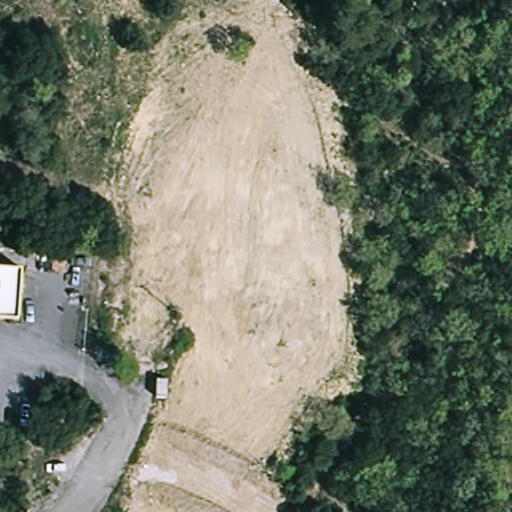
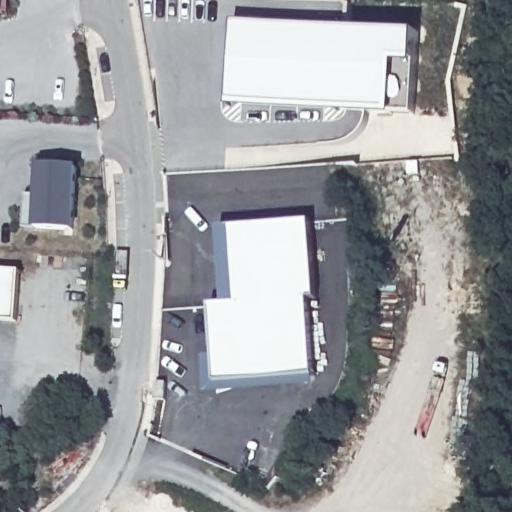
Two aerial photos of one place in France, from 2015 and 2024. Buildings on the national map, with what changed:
new [(0,0),(5,0),(4,12),(0,12),(0,0)]
new [(419,35),(414,114),(231,102),(236,23),(419,35)]
new [(38,164),(80,166),(75,230),(35,227),(38,164)]
new [(314,222),(320,298),(311,299),(317,375),(318,386),(207,395),(205,357),(215,356),(211,306),(225,306),(220,229),(314,222)]
unchanged [(17,328),(0,326),(0,275),(24,277),(17,328)]

